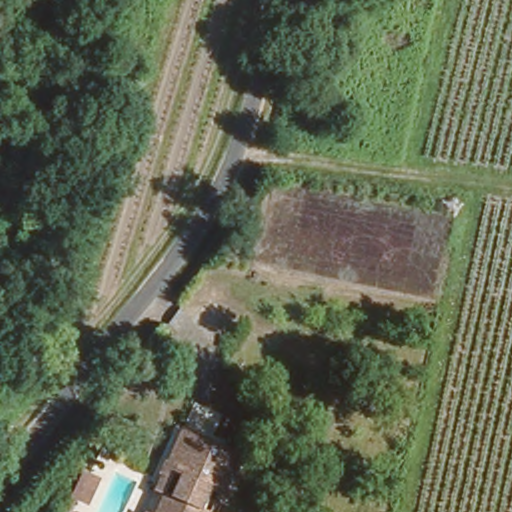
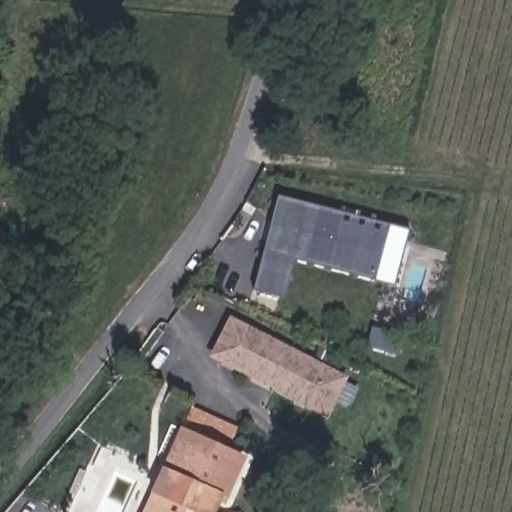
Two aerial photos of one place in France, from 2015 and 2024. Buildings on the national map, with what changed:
new [(252,289),(277,195),(409,230),(393,285),(292,258),(282,296),(252,289)]
new [(229,315),(348,376),(326,417),(209,356),(229,315)]
new [(190,406),(243,429),(234,447),(187,427),(181,425),(190,406)]
unchanged [(152,486),(162,466),(156,464),(162,450),(169,452),(181,425),(187,427),(248,453),(237,477),(229,495),(221,492),(212,512),(142,512),(152,486)]
new [(93,469),(101,473),(91,495),(85,508),(72,502),(88,467),(93,469)]
new [(240,510),(242,512),(226,512),(240,510)]

